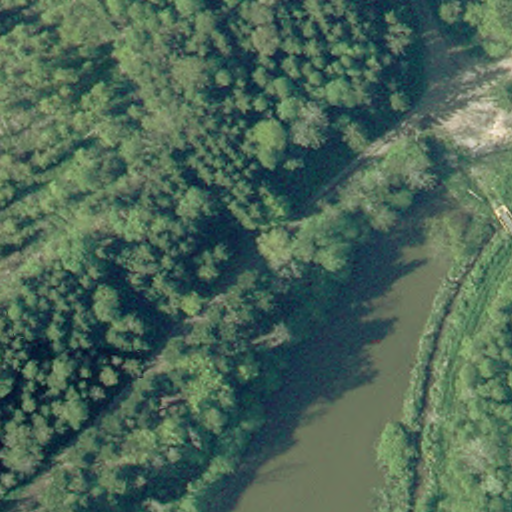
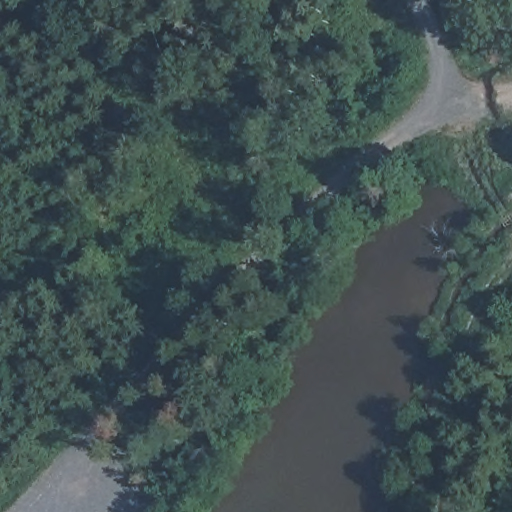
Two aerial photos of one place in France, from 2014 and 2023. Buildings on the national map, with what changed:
[]

